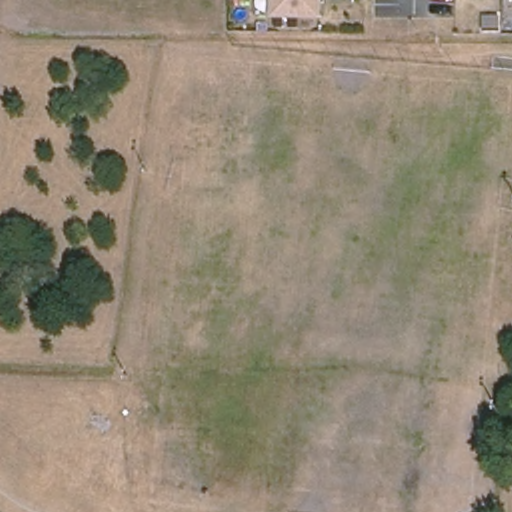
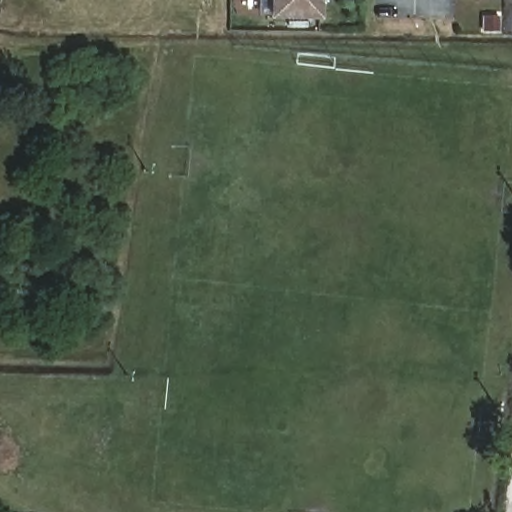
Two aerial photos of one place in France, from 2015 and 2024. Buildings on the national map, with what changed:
unchanged [(324,19),(272,18),(272,0),(324,0),(324,19)]

